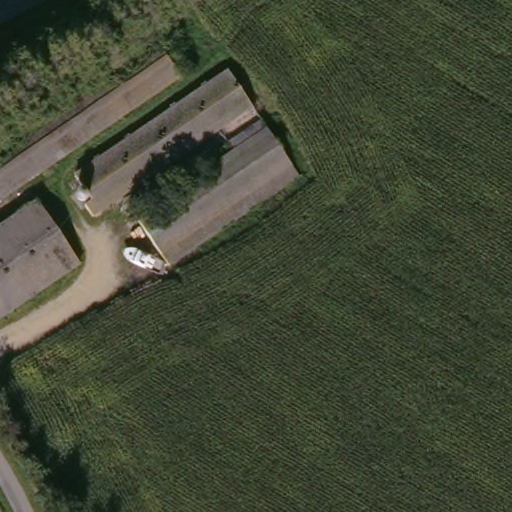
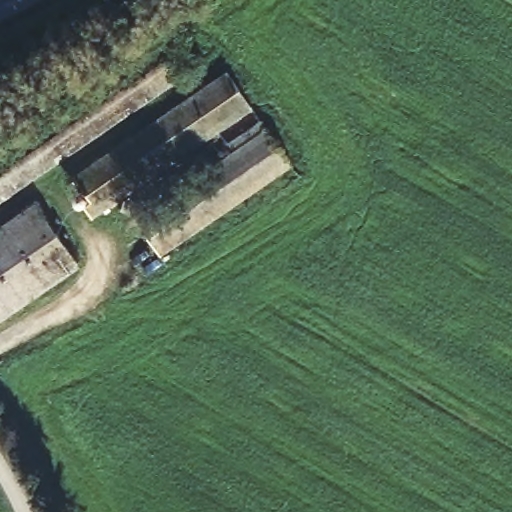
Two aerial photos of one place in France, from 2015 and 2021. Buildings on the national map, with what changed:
unchanged [(154,46),(175,79),(0,200),(0,153),(154,46)]
unchanged [(72,181),(230,74),(253,107),(94,216),(72,181)]
unchanged [(166,270),(131,220),(233,152),(227,145),(253,126),(298,181),(166,270)]
unchanged [(33,202),(75,263),(0,314),(0,225),(33,202)]

